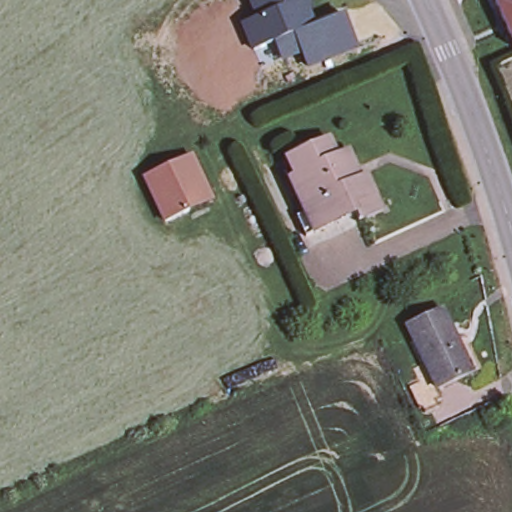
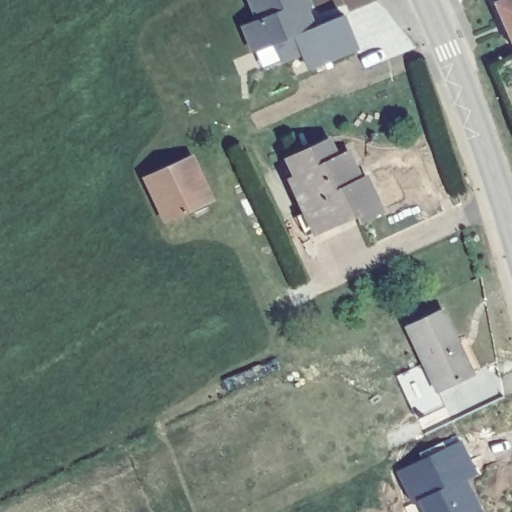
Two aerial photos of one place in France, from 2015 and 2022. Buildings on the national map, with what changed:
unchanged [(358,51),(305,70),(299,57),(281,63),(274,45),(253,53),(241,26),(256,20),(248,0),(309,0),(318,27),(345,16),(358,51)]
unchanged [(493,4),(491,0),(502,0),(493,4)]
unchanged [(512,50),(493,4),(502,0),(512,0),(512,50)]
unchanged [(300,212),(306,209),(291,176),(299,172),(291,153),(331,135),(340,154),(352,149),(364,174),(369,172),(384,205),(361,215),(358,208),(323,225),(309,232),(300,212)]
unchanged [(209,198),(186,209),(164,163),(188,152),(209,198)]
unchanged [(163,220),(141,175),(164,163),(186,209),(163,220)]
unchanged [(439,384),(408,322),(444,305),(473,367),(439,384)]
new [(479,474),(468,481),(484,512),(423,512),(419,502),(414,504),(405,493),(396,472),(462,440),(479,474)]

